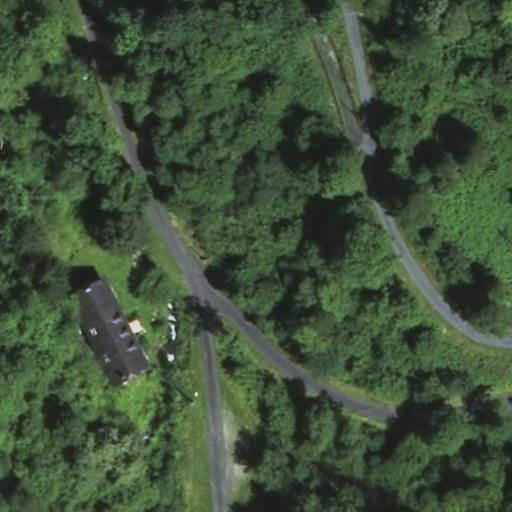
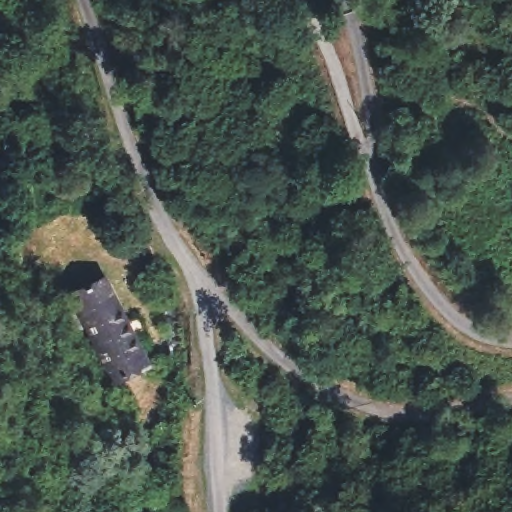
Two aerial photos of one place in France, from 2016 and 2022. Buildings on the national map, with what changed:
unchanged [(66,301),(99,281),(144,368),(111,390),(66,301)]

